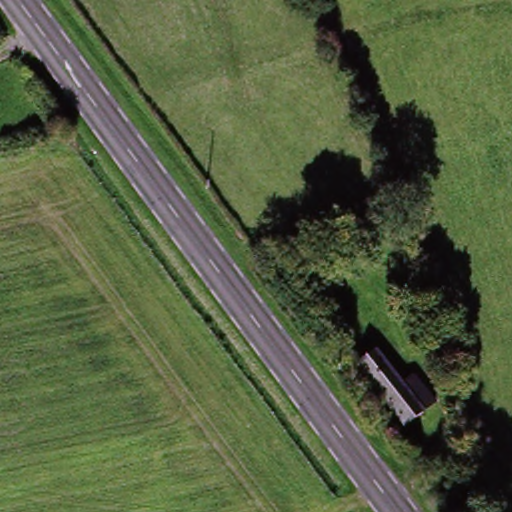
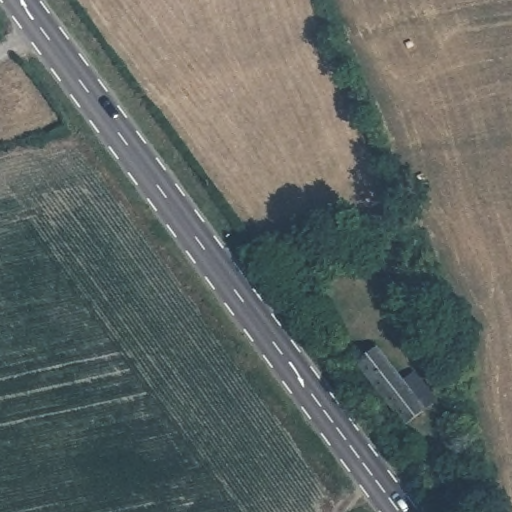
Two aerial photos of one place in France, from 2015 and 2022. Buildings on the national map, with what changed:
unchanged [(411,377),(431,400),(401,426),(352,372),(374,353),(402,383),(411,377)]

